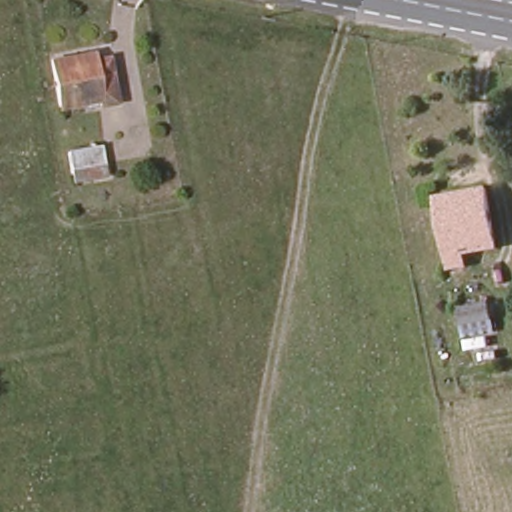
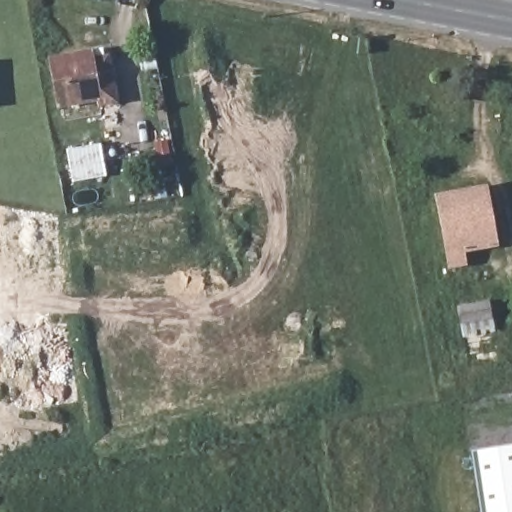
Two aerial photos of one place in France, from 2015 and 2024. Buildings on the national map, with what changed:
unchanged [(91,51),(93,57),(107,55),(117,102),(99,105),(96,97),(60,104),(51,59),(91,51)]
unchanged [(100,144),(105,175),(74,181),(68,149),(100,144)]
unchanged [(485,189),(495,247),(461,254),(464,269),(449,272),(435,197),(485,189)]
unchanged [(488,300),(493,327),(463,332),(458,305),(488,300)]
new [(474,453),(512,448),(512,512),(483,512),(474,453)]

